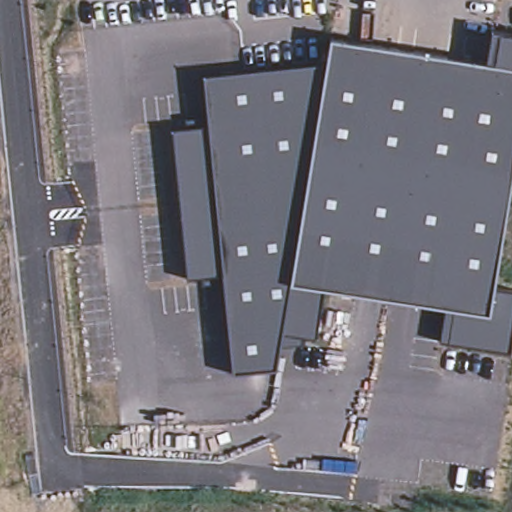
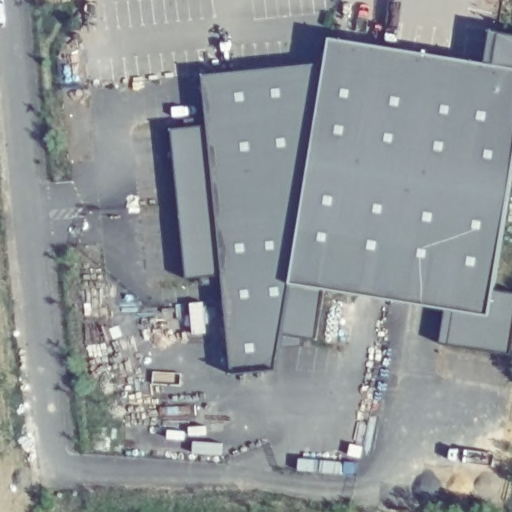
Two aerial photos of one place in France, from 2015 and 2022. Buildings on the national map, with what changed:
unchanged [(512,35),(512,177),(493,292),(512,294),(512,354),(443,344),(448,310),(325,290),(317,341),(305,339),(303,345),(281,351),(280,372),(233,376),(225,277),(186,281),(173,131),(210,126),(206,76),(327,63),(331,41),(486,66),(492,33),(512,35)]

